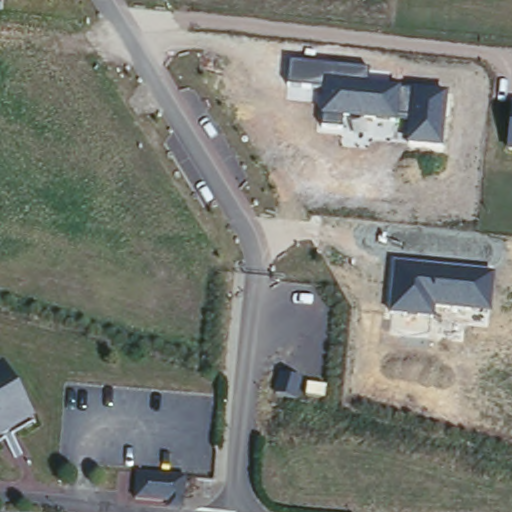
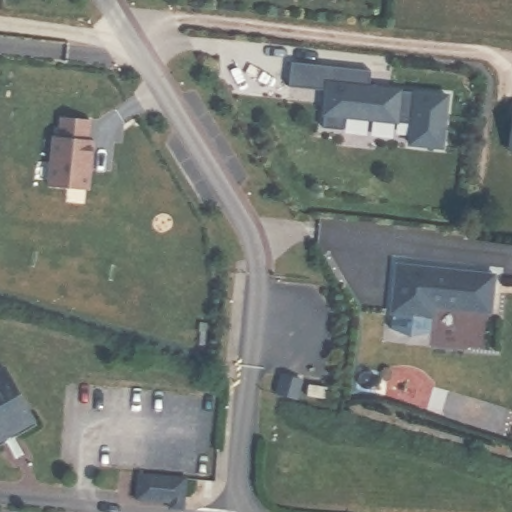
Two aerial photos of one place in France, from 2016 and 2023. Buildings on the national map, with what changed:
unchanged [(369,71),(369,82),(402,87),(401,91),(413,91),(414,88),(448,91),(443,148),(406,144),(409,120),(399,119),(398,124),(344,119),(343,129),(319,127),(323,89),(287,85),(290,61),(369,71)]
unchanged [(512,101),(512,149),(508,149),(512,101)]
new [(88,190),(48,186),(53,136),(59,137),(61,117),(89,120),(87,140),(93,140),(88,190)]
unchanged [(495,271),(491,314),(435,307),(434,318),(389,313),(395,262),(495,271)]
unchanged [(5,357),(40,416),(0,439),(0,360),(5,357)]
unchanged [(182,507),(132,503),(133,476),(185,476),(182,507)]

